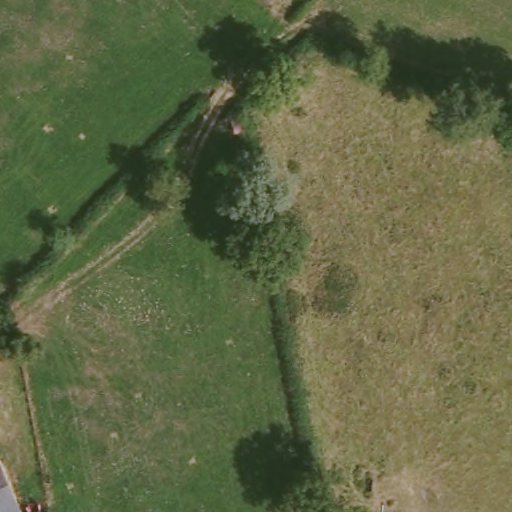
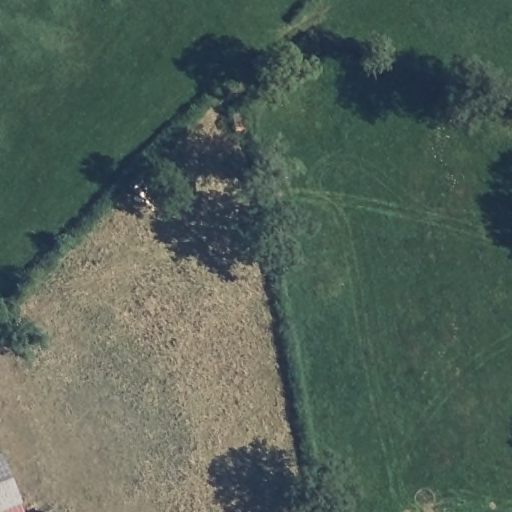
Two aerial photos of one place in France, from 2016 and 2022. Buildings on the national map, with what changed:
unchanged [(0,457),(18,512),(0,512),(0,457)]

